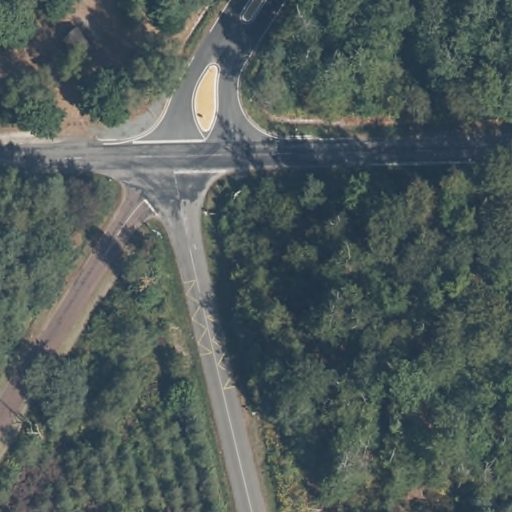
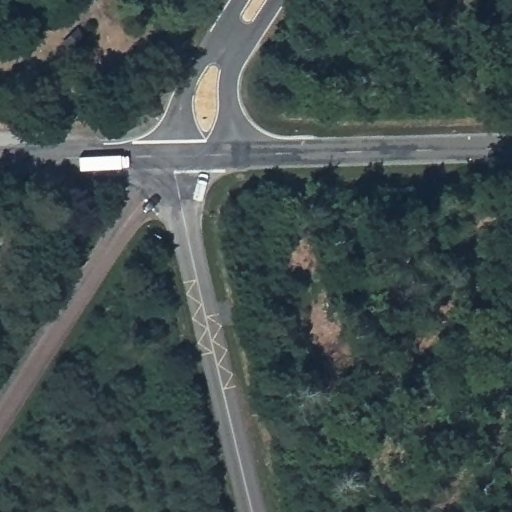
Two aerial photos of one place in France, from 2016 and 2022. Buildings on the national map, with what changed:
unchanged [(61,42),(76,29),(90,48),(76,60),(61,42)]

